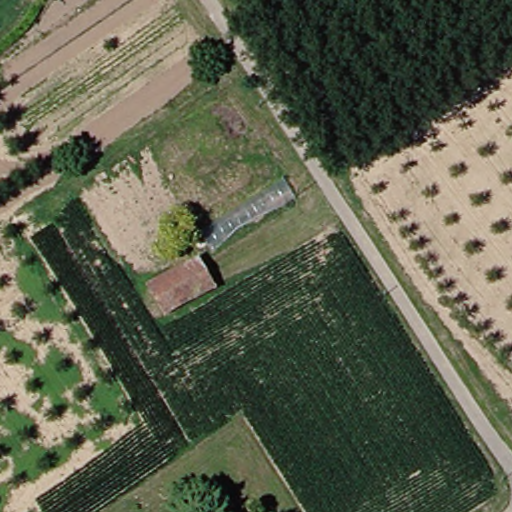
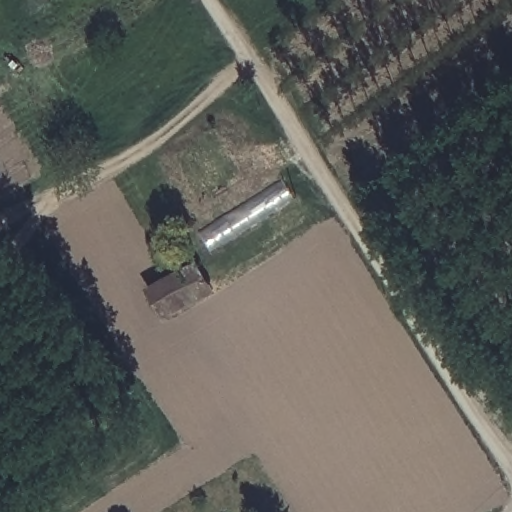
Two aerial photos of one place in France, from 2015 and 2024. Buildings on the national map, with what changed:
unchanged [(190,261),(203,290),(157,312),(142,285),(190,261)]

